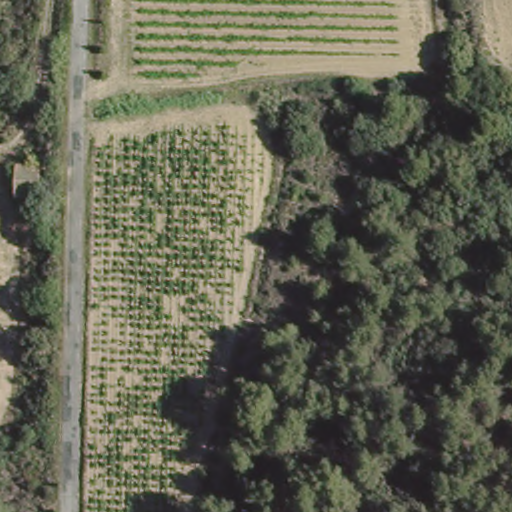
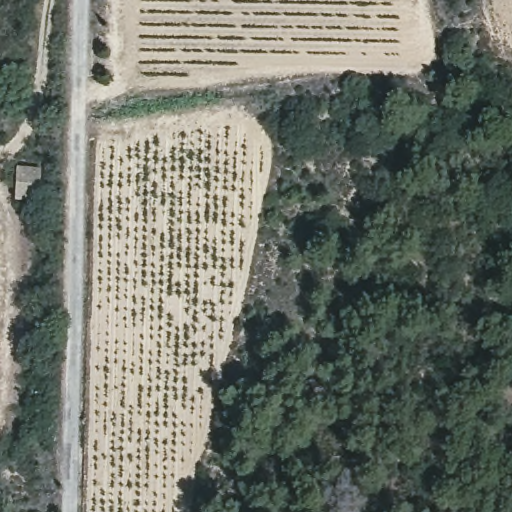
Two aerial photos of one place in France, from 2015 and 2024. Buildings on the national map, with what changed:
unchanged [(37,205),(10,201),(15,164),(41,168),(37,205)]

